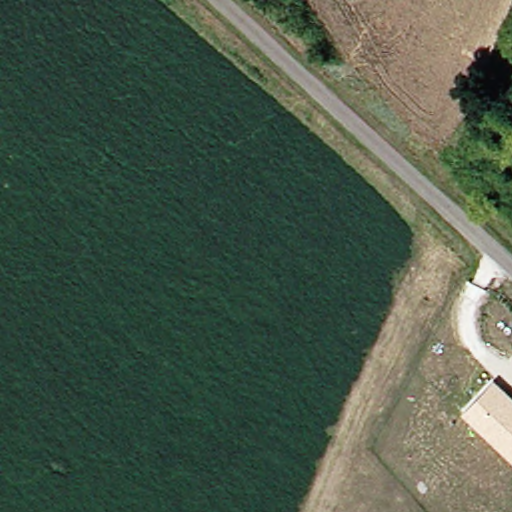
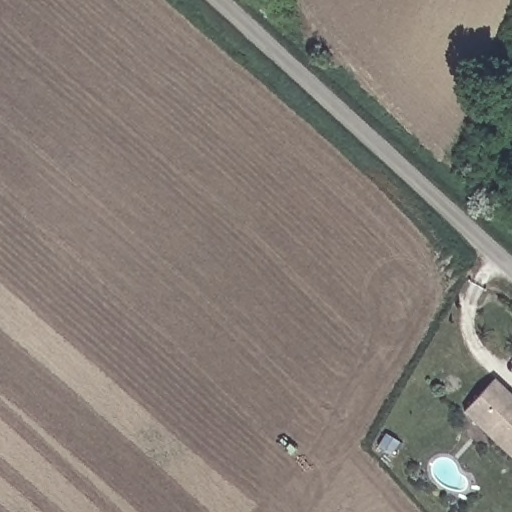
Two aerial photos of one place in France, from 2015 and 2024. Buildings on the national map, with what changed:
unchanged [(463,413),(493,379),(512,397),(512,460),(463,413)]

